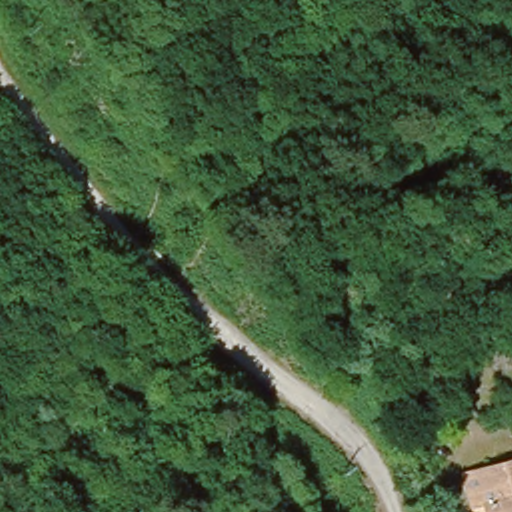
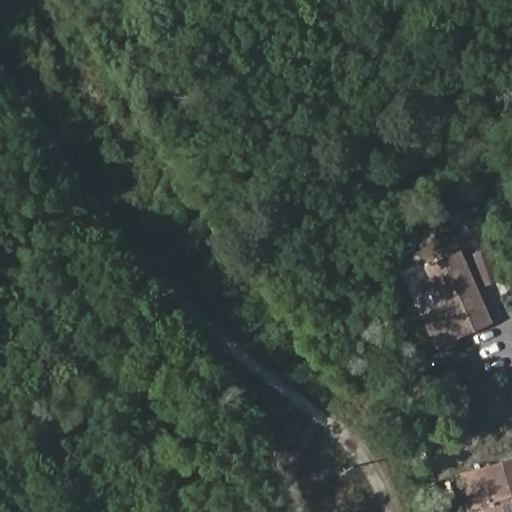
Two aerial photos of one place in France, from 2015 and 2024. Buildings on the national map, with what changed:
new [(492,322),(436,349),(418,311),(440,302),(423,266),(461,249),(492,322)]
unchanged [(475,482),(470,465),(512,453),(512,512),(484,512),(480,496),(475,482)]

